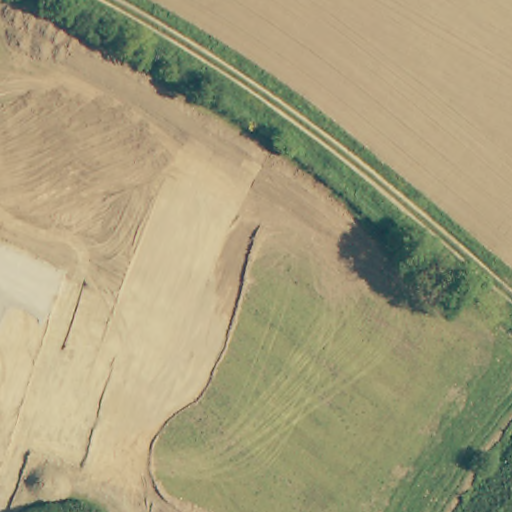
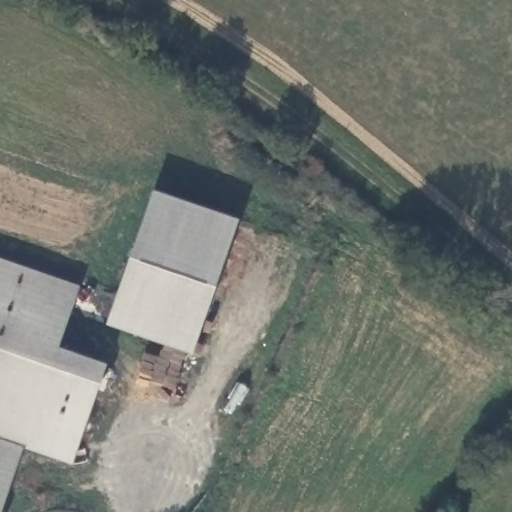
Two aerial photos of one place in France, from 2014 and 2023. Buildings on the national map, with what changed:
new [(154,190),(240,220),(194,356),(106,326),(154,190)]
new [(60,348),(109,364),(73,465),(25,449),(3,512),(0,512),(0,257),(81,286),(60,348)]

